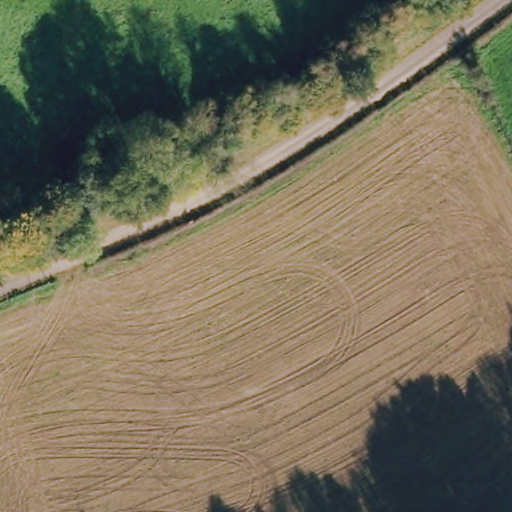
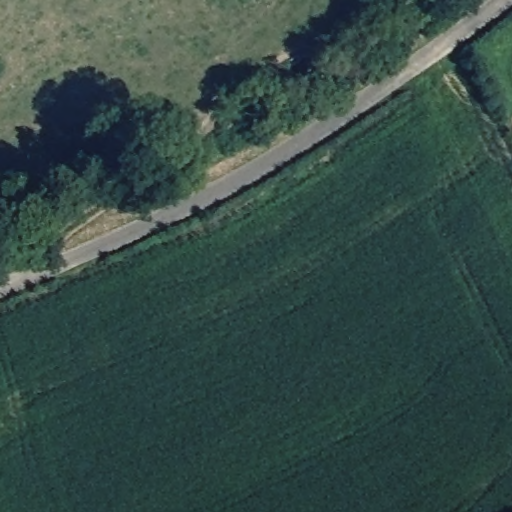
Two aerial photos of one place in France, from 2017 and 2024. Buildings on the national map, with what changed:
unchanged [(51,180),(62,205),(43,215),(31,188),(51,180)]

